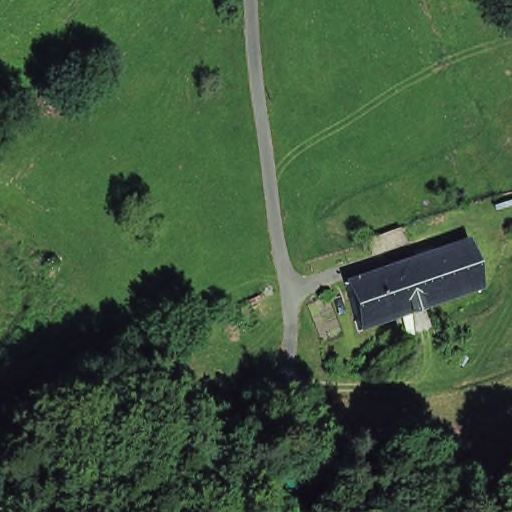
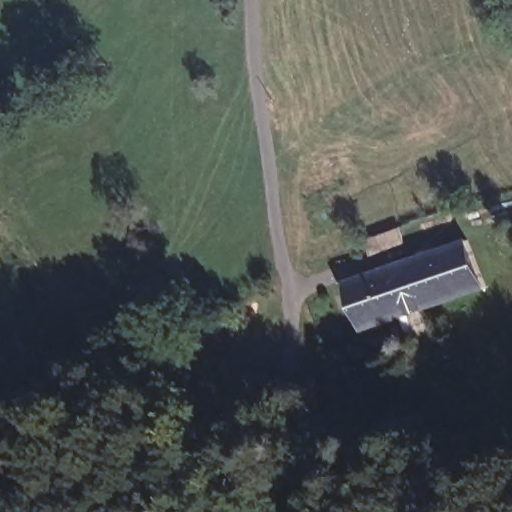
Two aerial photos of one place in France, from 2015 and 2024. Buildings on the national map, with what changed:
unchanged [(363,235),(372,232),(399,225),(403,239),(377,247),(367,250),(363,235)]
unchanged [(360,325),(345,275),(466,236),(480,285),(360,325)]

